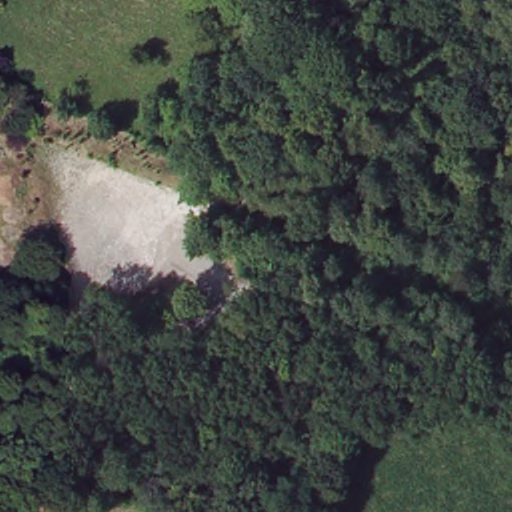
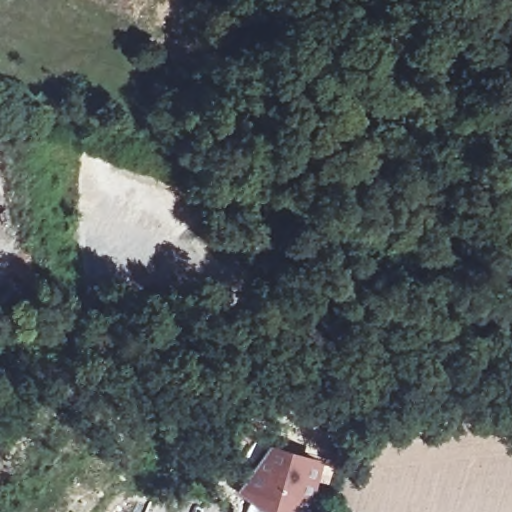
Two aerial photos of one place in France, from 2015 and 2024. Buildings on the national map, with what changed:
new [(321,460),(308,512),(269,512),(254,508),(236,493),(268,445),(321,460)]

